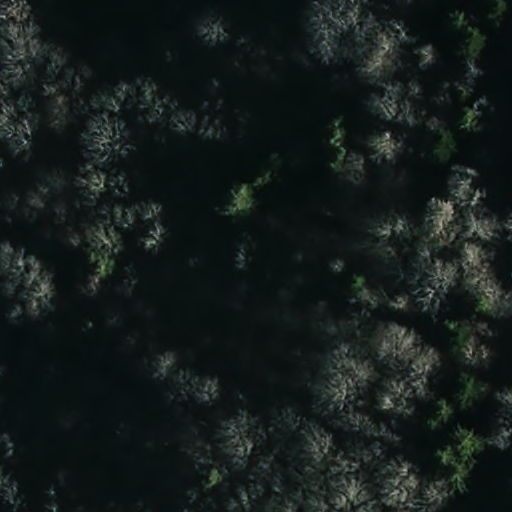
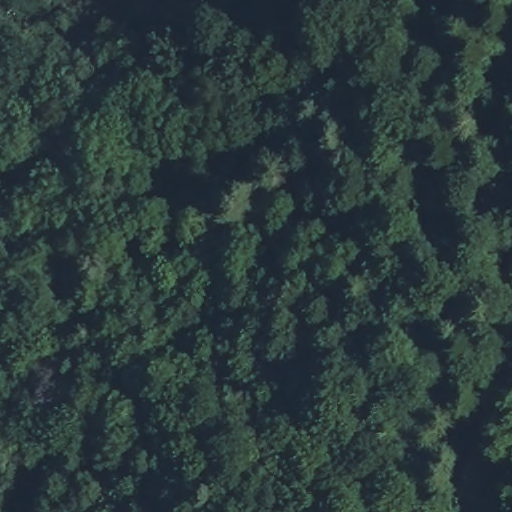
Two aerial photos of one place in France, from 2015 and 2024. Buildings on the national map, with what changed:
unchanged [(473,484),(469,507),(449,502),(450,479),(473,484)]

